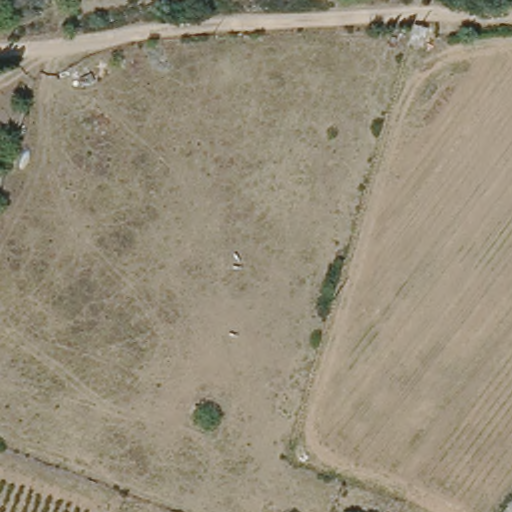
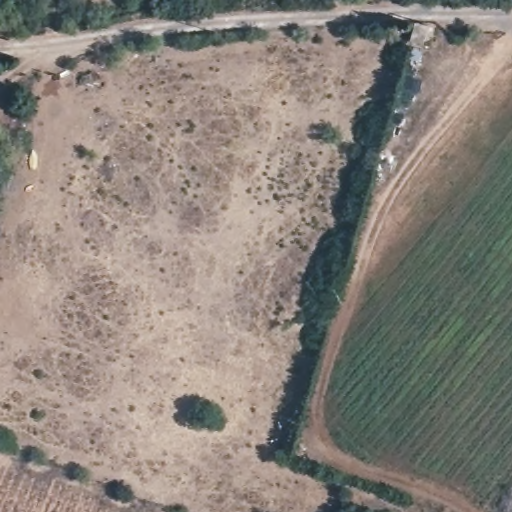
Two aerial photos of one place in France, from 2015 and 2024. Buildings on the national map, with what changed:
unchanged [(422,44),(410,39),(415,24),(427,27),(422,44)]

